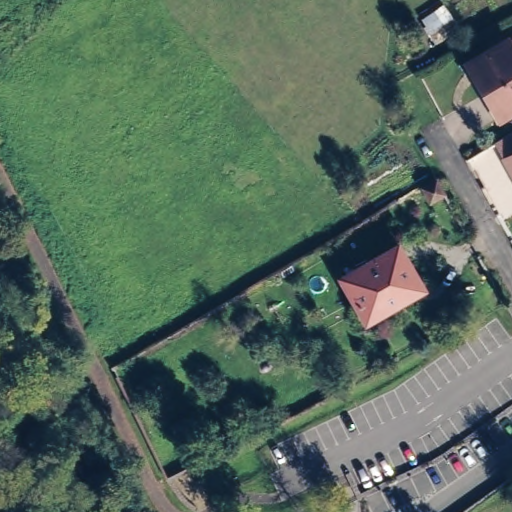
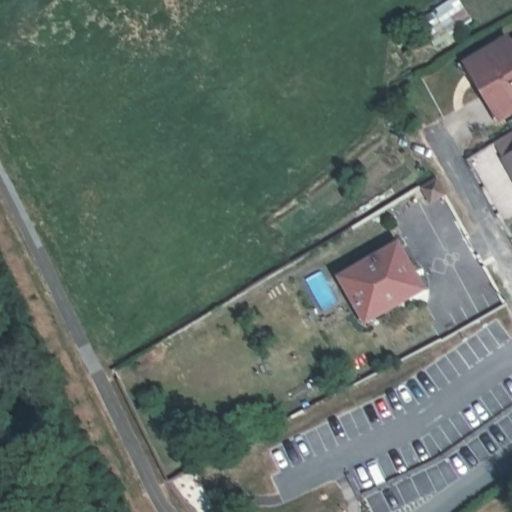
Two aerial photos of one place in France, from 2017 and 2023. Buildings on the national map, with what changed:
unchanged [(463,70),(502,46),(512,40),(512,110),(498,119),(494,122),(479,99),(463,70)]
unchanged [(512,133),(507,136),(502,126),(512,120),(512,133)]
unchanged [(512,133),(512,154),(497,164),(488,147),(507,136),(512,133)]
unchanged [(512,191),(497,164),(512,154),(512,191)]
unchanged [(423,187),(436,179),(444,194),(431,202),(423,187)]
unchanged [(362,319),(341,283),(397,251),(422,293),(388,313),(366,325),(362,319)]

